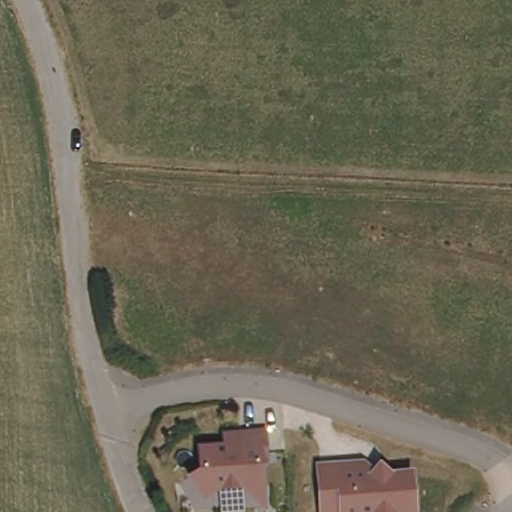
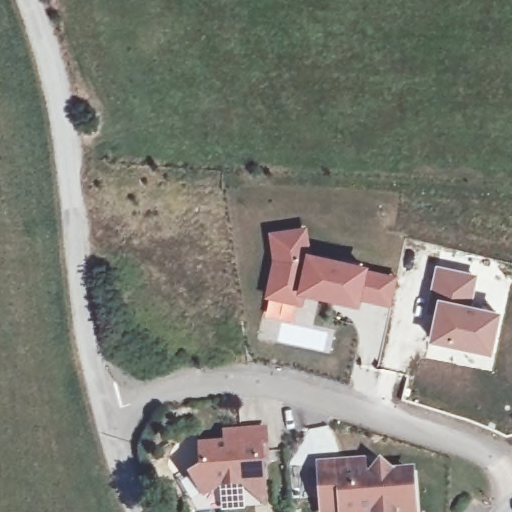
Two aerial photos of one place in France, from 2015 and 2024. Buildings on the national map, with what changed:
new [(383,304),(350,296),(349,298),(299,287),(297,298),(267,291),(275,256),(272,234),(302,231),(306,260),(317,262),(319,258),(357,267),(357,269),(389,277),(383,304)]
new [(477,273),(470,304),(499,310),(490,354),(426,340),(430,318),(424,317),(434,264),(477,273)]
unchanged [(250,487),(245,482),(222,485),(206,493),(197,472),(210,468),(207,444),(233,443),(232,437),(246,436),(245,431),(266,430),(269,460),(264,461),(265,487),(269,504),(250,487)]
unchanged [(332,512),(329,466),(372,463),(380,463),(388,466),(397,474),(398,480),(417,479),(419,512),(400,512),(400,510),(366,512),(332,512)]

